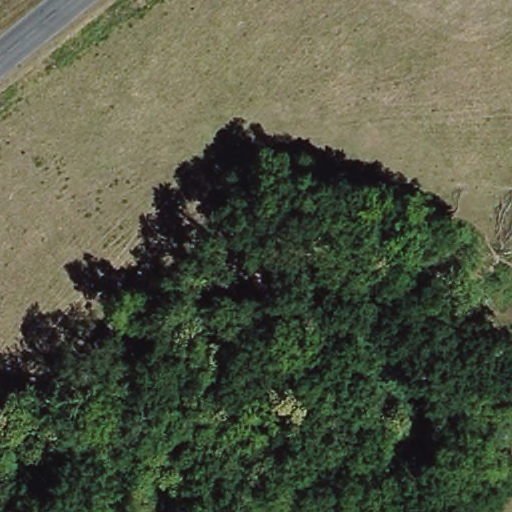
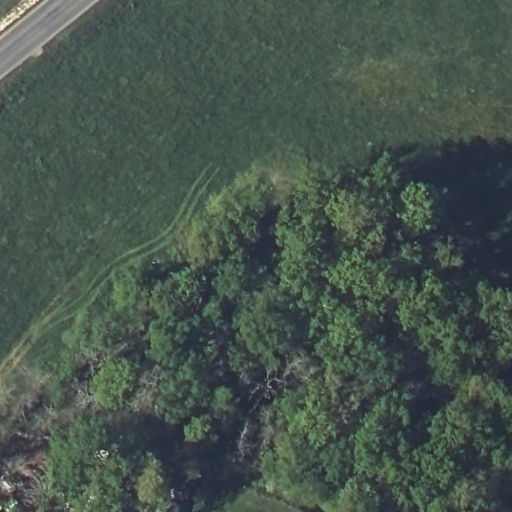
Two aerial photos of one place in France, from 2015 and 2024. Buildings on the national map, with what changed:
[]

